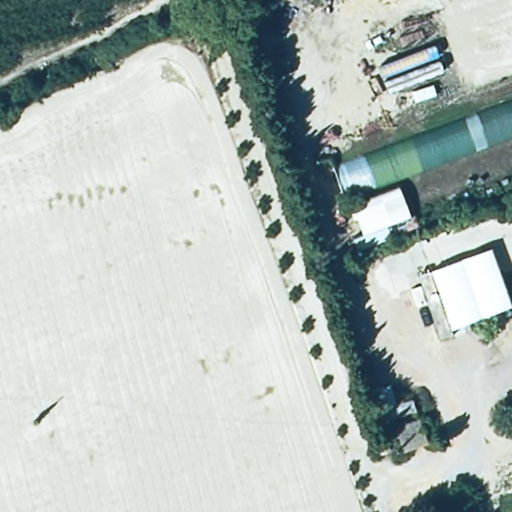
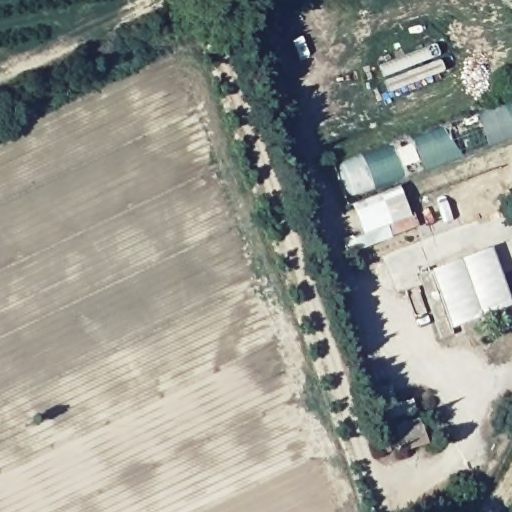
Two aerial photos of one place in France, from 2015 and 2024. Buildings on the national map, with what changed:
unchanged [(512,95),(512,143),(395,185),(342,204),(325,162),(512,95)]
unchanged [(348,240),(358,236),(342,204),(395,185),(417,229),(355,255),(348,240)]
unchanged [(507,307),(446,328),(428,272),(458,261),(497,275),(507,307)]
unchanged [(395,405),(410,400),(415,412),(380,425),(367,391),(387,383),(395,405)]
unchanged [(415,420),(423,443),(399,451),(390,428),(415,420)]

